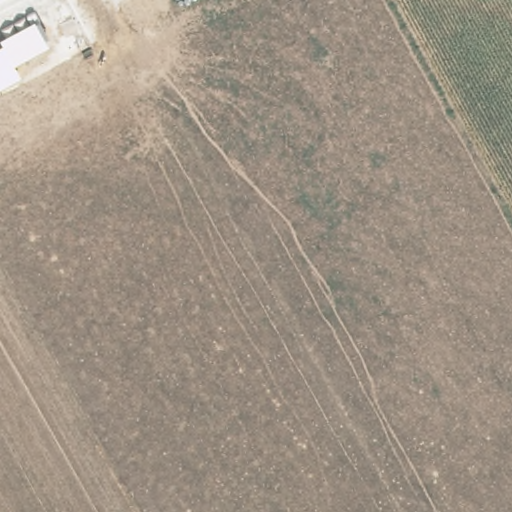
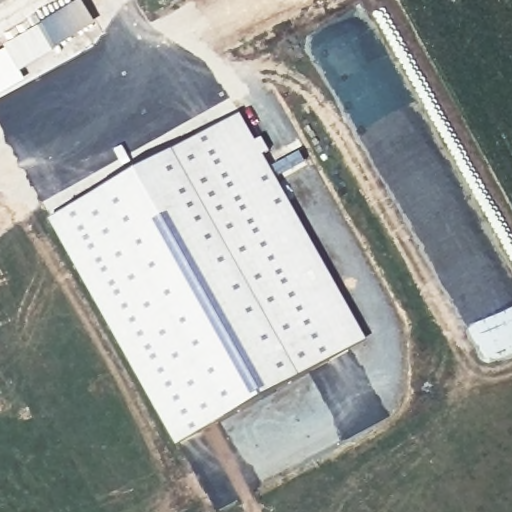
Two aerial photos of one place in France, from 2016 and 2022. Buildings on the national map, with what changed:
new [(34,21),(37,19),(42,26),(51,21),(46,14),(69,0),(79,0),(92,21),(54,44),(48,35),(44,37),(48,45),(14,65),(20,73),(0,85),(0,38),(32,19),(34,21)]
new [(177,447),(50,219),(241,112),(256,140),(262,136),(269,150),(265,153),(367,337),(177,447)]

